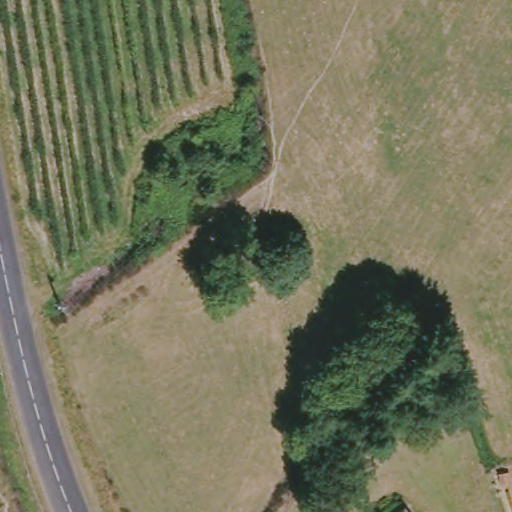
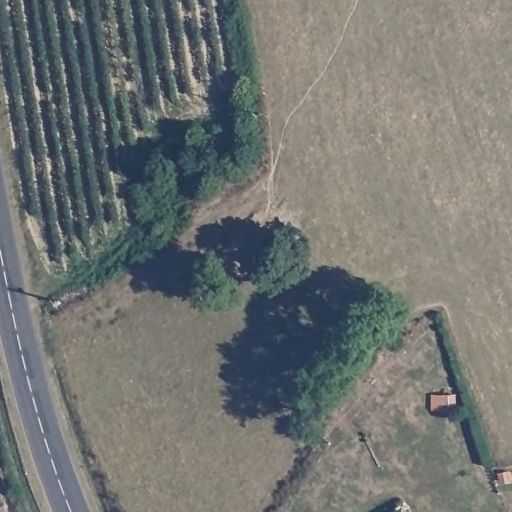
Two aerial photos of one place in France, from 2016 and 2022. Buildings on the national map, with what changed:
unchanged [(395,511),(396,512),(393,512),(395,511)]

